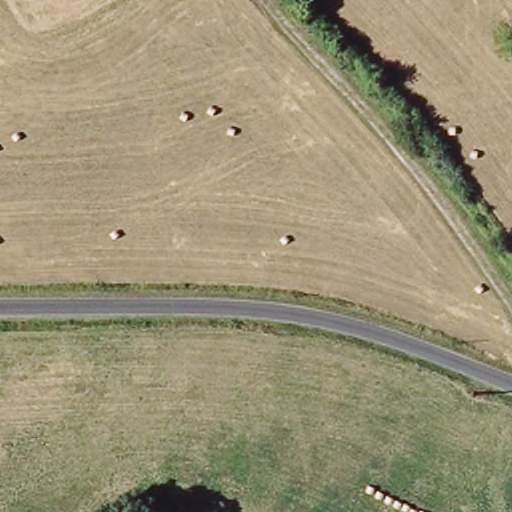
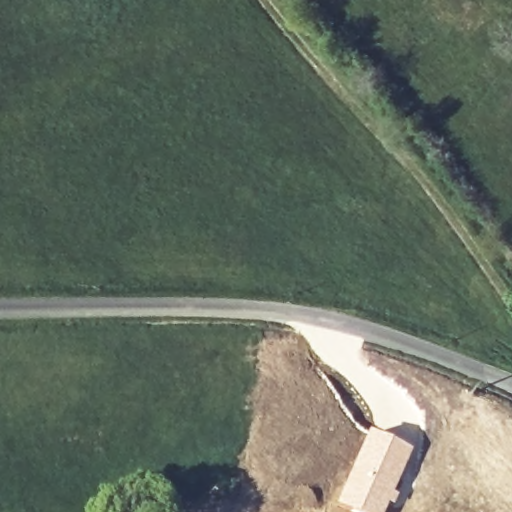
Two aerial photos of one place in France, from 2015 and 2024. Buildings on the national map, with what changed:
new [(368,429),(412,448),(383,512),(354,512),(335,503),(368,429)]

